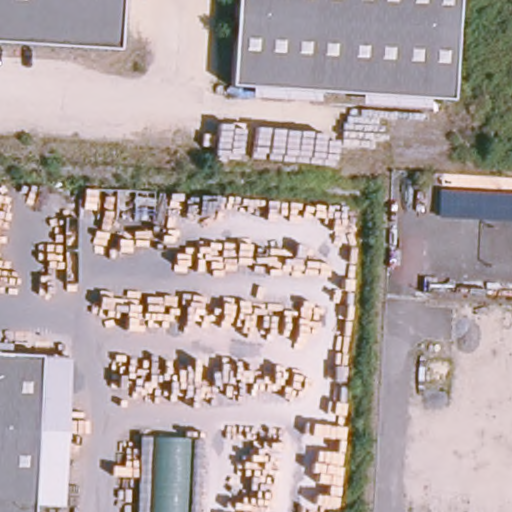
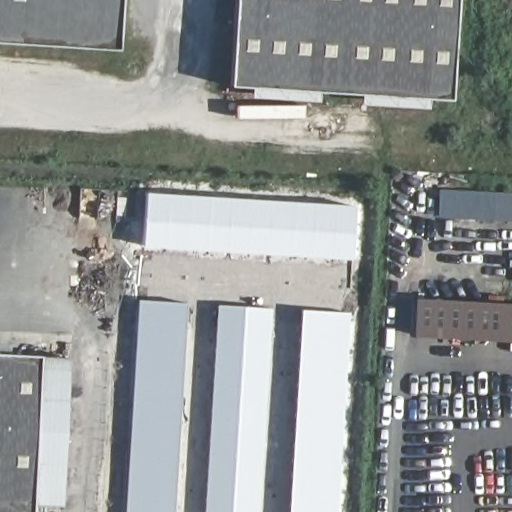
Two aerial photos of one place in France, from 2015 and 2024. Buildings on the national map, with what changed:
unchanged [(0,42),(0,0),(123,0),(121,48),(0,42)]
unchanged [(459,0),(451,101),(230,85),(236,0),(459,0)]
unchanged [(512,193),(512,221),(438,217),(439,189),(512,193)]
new [(356,204),(351,260),(143,247),(148,193),(356,204)]
new [(414,297),(512,305),(512,342),(411,334),(414,297)]
new [(185,303),(173,512),(125,512),(138,299),(185,303)]
new [(217,304),(272,308),(260,512),(204,512),(217,304)]
new [(350,313),(337,512),(289,512),(302,309),(350,313)]
unchanged [(37,512),(0,512),(0,357),(26,359),(47,361),(38,509),(37,512)]
unchanged [(76,363),(66,512),(38,509),(47,361),(76,363)]
demolished [(201,512),(138,512),(140,438),(204,441),(201,512)]

